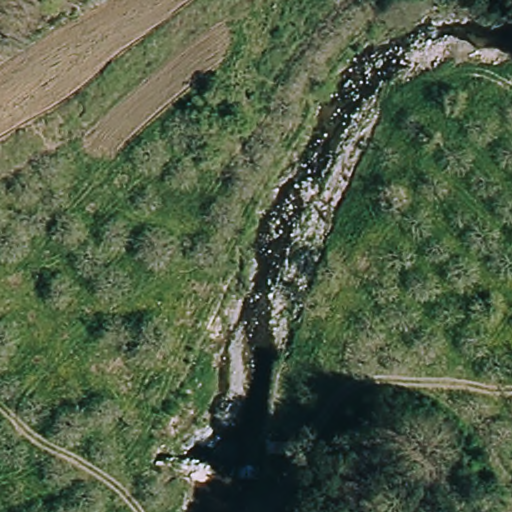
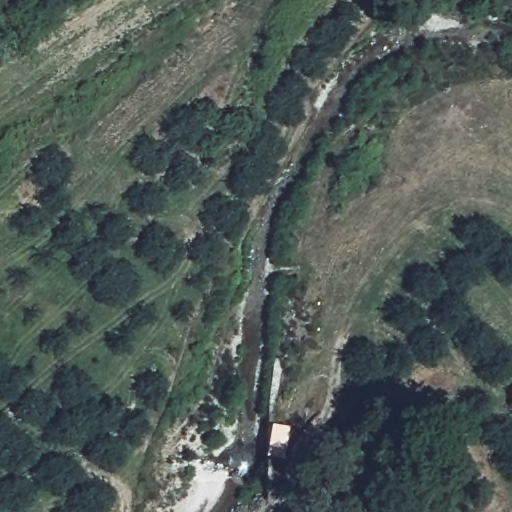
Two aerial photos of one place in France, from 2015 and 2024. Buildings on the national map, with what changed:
[]

